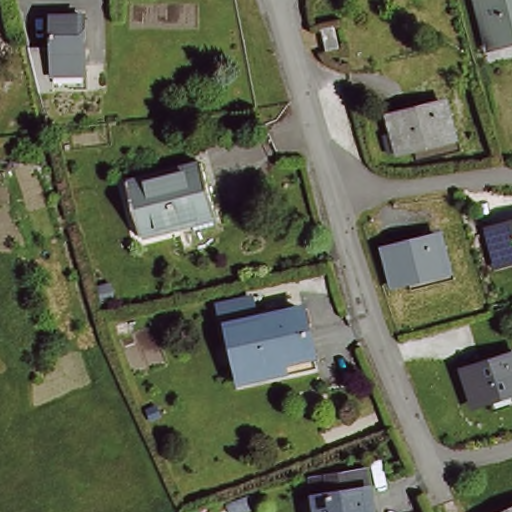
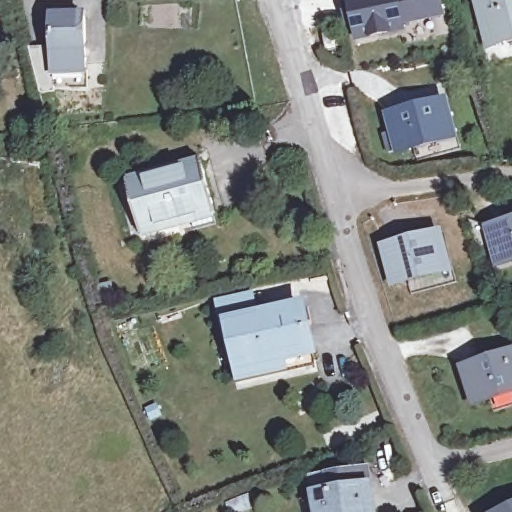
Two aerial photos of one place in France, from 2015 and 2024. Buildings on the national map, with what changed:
new [(352,28),(344,29),(340,0),(442,0),(446,18),(406,26),(408,34),(355,43),(352,28)]
unchanged [(492,51),(479,0),(512,0),(512,46),(492,51)]
unchanged [(41,74),(33,43),(58,43),(58,11),(90,12),(90,69),(58,70),(59,85),(44,86),(41,74)]
unchanged [(339,43),(326,46),(321,33),(335,30),(339,43)]
unchanged [(453,139),(401,152),(392,116),(444,103),(453,139)]
unchanged [(215,216),(142,235),(128,182),(201,164),(215,216)]
unchanged [(501,264),(491,230),(512,224),(512,260),(501,264)]
unchanged [(448,272),(394,286),(386,250),(441,237),(448,272)]
unchanged [(253,320),(299,310),(311,365),(238,380),(221,303),(248,298),(253,320)]
unchanged [(476,404),(465,369),(512,354),(512,392),(476,404)]
unchanged [(88,355),(96,369),(82,378),(74,363),(88,355)]
unchanged [(374,512),(319,512),(316,499),(313,499),(309,479),(331,476),(366,471),(374,512)]
unchanged [(256,507),(243,512),(231,512),(228,505),(253,497),(256,507)]
unchanged [(512,511),(512,512),(509,512),(512,511)]

